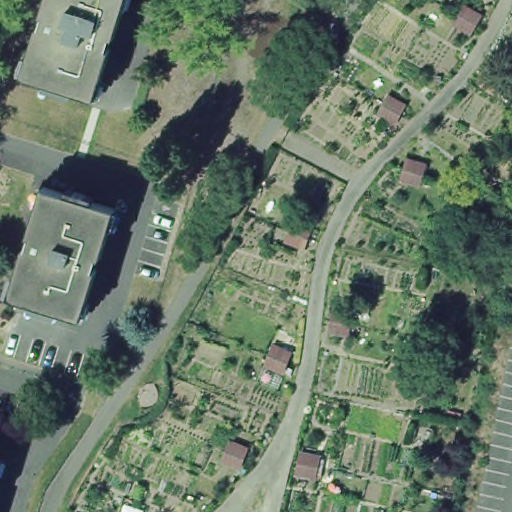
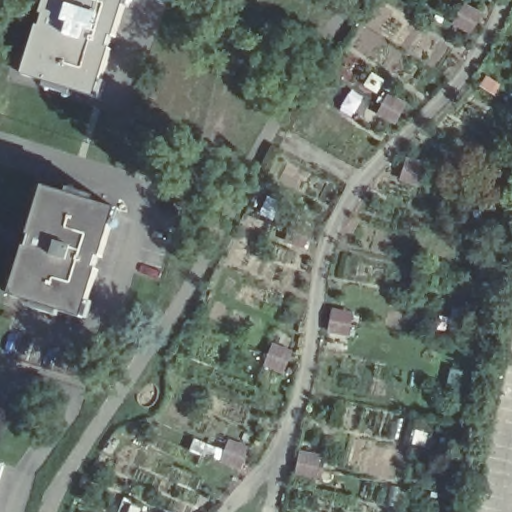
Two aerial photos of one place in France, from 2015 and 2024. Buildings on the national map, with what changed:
unchanged [(32,27),(36,15),(33,14),(37,0),(118,0),(107,37),(102,36),(97,49),(102,50),(88,97),(15,75),(30,26),(32,27)]
unchanged [(182,0),(211,0),(207,14),(180,5),(182,0)]
unchanged [(20,247),(25,247),(29,234),(25,232),(40,186),(112,209),(97,256),(94,255),(90,267),(93,268),(77,318),(5,295),(20,247)]

